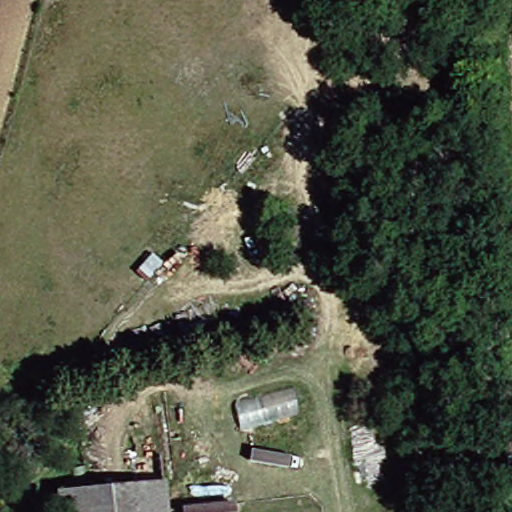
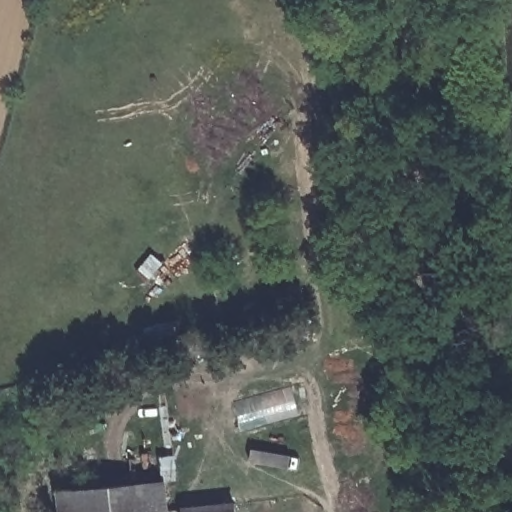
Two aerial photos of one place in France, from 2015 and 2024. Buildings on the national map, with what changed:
unchanged [(300,413),(240,430),(234,401),(292,385),(300,413)]
unchanged [(51,490),(157,479),(160,512),(53,512),(51,490)]
unchanged [(177,505),(228,500),(229,512),(177,512),(177,505)]

